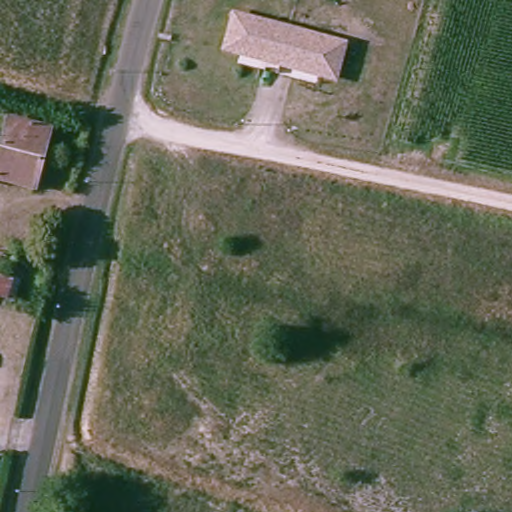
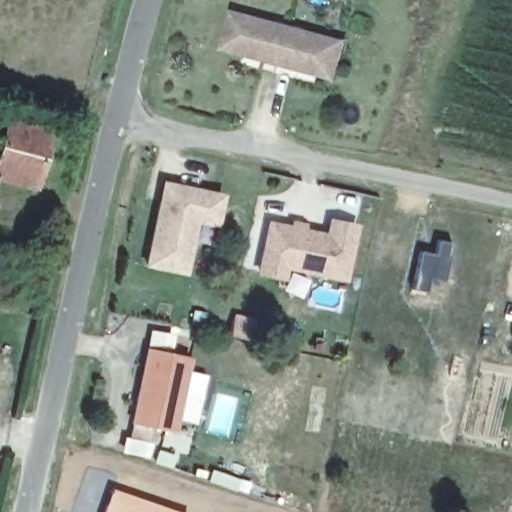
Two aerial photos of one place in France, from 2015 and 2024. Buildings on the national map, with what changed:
unchanged [(352,38),(346,74),(234,52),(240,17),(352,38)]
unchanged [(35,186),(0,175),(0,153),(1,153),(13,114),(55,127),(35,186)]
new [(217,227),(197,223),(186,274),(143,266),(161,179),(225,191),(217,227)]
new [(346,280),(288,268),(286,281),(255,274),(265,219),(290,224),(290,220),(306,223),(306,226),(325,230),(327,218),(358,223),(346,280)]
new [(420,250),(432,253),(436,239),(451,243),(440,282),(429,279),(424,294),(410,290),(420,250)]
new [(195,433),(177,426),(176,431),(150,426),(143,455),(124,450),(130,422),(146,347),(150,329),(167,331),(166,350),(192,356),(185,397),(202,401),(195,433)]
new [(512,341),(512,344),(511,343),(512,341)]
new [(180,512),(102,512),(111,487),(180,512)]

